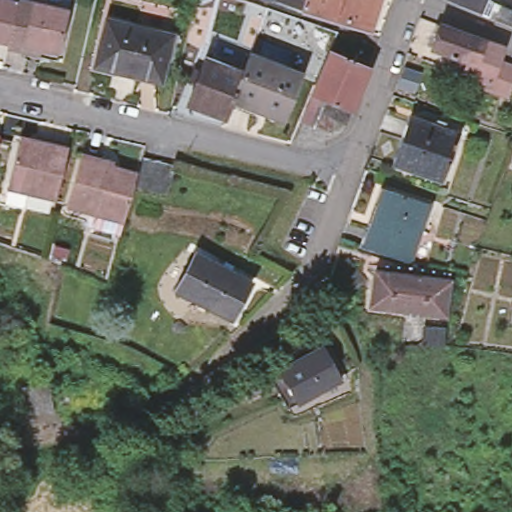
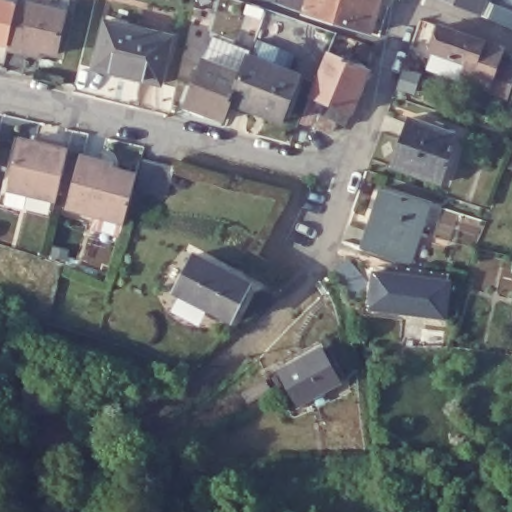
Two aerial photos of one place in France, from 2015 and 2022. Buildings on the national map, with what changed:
unchanged [(0,0),(9,0),(15,1),(6,42),(0,41),(0,0)]
unchanged [(21,50),(5,46),(6,42),(15,1),(15,0),(27,0),(65,9),(55,51),(34,46),(32,53),(21,50)]
unchanged [(303,0),(376,0),(366,32),(327,21),(300,14),(269,4),(270,0),(297,0),(303,1),(303,0)]
unchanged [(503,23),(497,21),(481,14),(472,10),(448,0),(485,0),(486,0),(504,9),(512,12),(512,29),(503,23)]
unchanged [(167,38),(165,49),(162,60),(161,60),(155,84),(111,73),(90,68),(91,61),(100,22),(114,25),(167,38)]
unchanged [(498,99),(480,92),(482,87),(456,77),(461,65),(425,52),(434,28),(475,44),(494,50),(489,64),(508,71),(498,99)]
unchanged [(325,126),(311,121),(321,97),(307,91),(325,47),(366,64),(347,107),(342,120),(329,115),(325,126)]
unchanged [(296,70),(279,116),(261,110),(227,96),(237,70),(244,50),(278,62),(296,70)]
unchanged [(182,101),(200,55),(237,70),(227,96),(220,115),(182,101)]
unchanged [(407,113),(455,130),(438,177),(390,162),(407,113)]
unchanged [(9,176),(18,136),(34,140),(36,134),(67,140),(56,195),(22,187),(7,184),(9,176)]
unchanged [(64,209),(77,156),(99,162),(98,166),(123,174),(122,179),(109,222),(64,209)]
unchanged [(152,196),(137,192),(122,188),(131,159),(146,162),(161,166),(152,196)]
unchanged [(386,181),(431,195),(411,255),(367,241),(386,181)]
unchanged [(168,286),(188,250),(197,255),(247,281),(227,318),(182,295),(168,286)]
unchanged [(378,275),(450,283),(446,316),(374,307),(378,275)]
unchanged [(319,344),(337,378),(297,400),(278,365),(319,344)]
unchanged [(22,388),(48,385),(52,411),(25,415),(22,388)]

